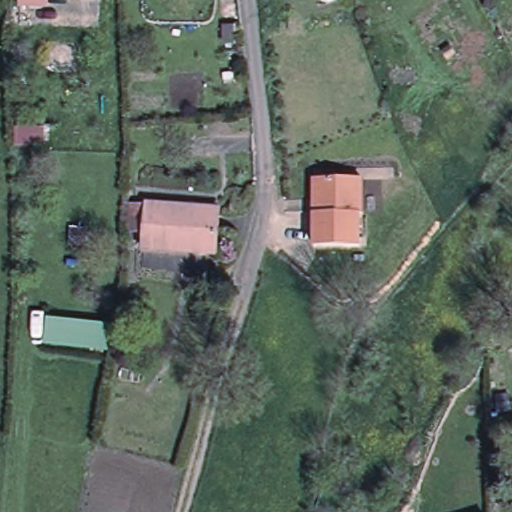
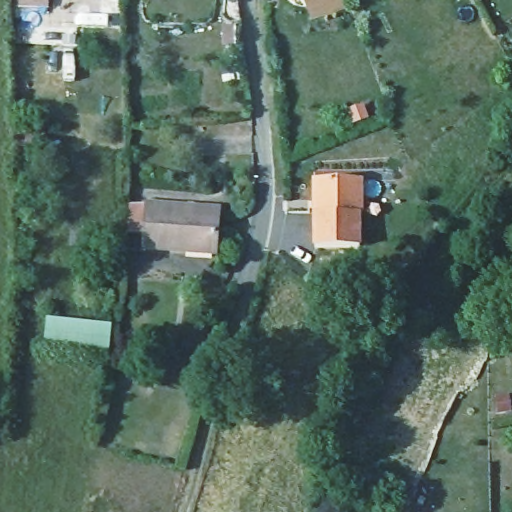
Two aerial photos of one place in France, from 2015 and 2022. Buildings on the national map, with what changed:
unchanged [(20,6),(20,0),(47,0),(47,7),(20,6)]
unchanged [(362,181),(364,217),(361,217),(361,250),(317,251),(316,217),(316,204),(315,182),(362,181)]
unchanged [(152,249),(154,232),(137,231),(137,226),(137,203),(155,204),(177,205),(194,206),(194,208),(227,210),(225,236),(225,250),(224,253),(186,251),(152,249)]

